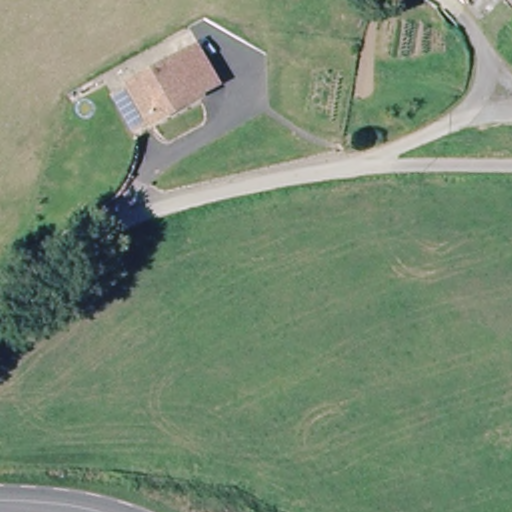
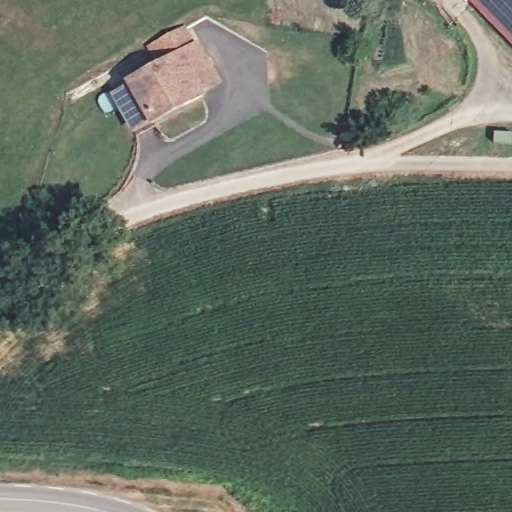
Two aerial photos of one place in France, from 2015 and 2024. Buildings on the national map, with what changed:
unchanged [(466,1),(465,3),(462,0),(467,0),(466,1)]
new [(512,47),(466,1),(467,0),(512,0),(512,47)]
unchanged [(132,105),(122,87),(138,77),(136,75),(202,36),(218,63),(223,71),(206,81),(208,85),(159,114),(157,110),(141,120),(132,105)]

